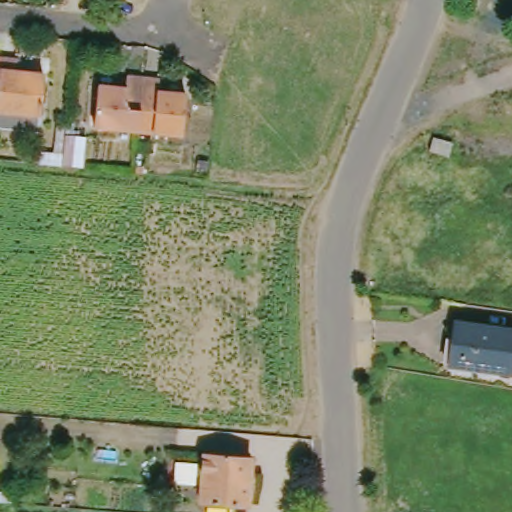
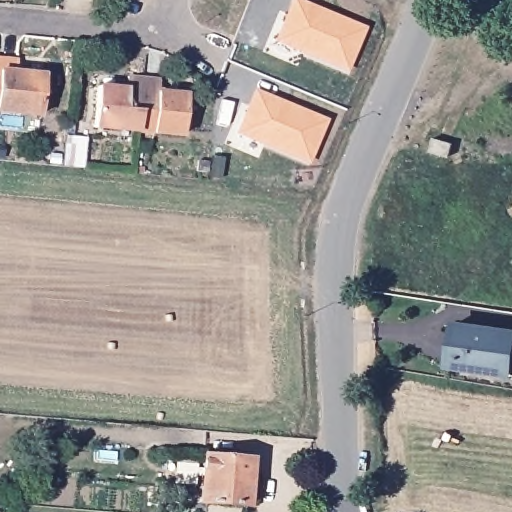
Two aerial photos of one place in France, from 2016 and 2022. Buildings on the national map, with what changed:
new [(297,0),(357,25),(341,66),(272,37),(287,0),(297,0)]
unchanged [(13,73),(40,74),(38,116),(0,113),(0,61),(13,62),(13,73)]
unchanged [(137,134),(93,130),(97,90),(124,92),(125,81),(141,82),(137,134)]
unchanged [(157,84),(157,96),(182,98),(180,138),(137,134),(141,82),(157,84)]
new [(251,88),(320,117),(303,158),(234,129),(251,88)]
new [(27,150),(47,152),(48,124),(60,125),(56,164),(26,162),(27,150)]
unchanged [(451,151),(439,148),(443,135),(454,139),(451,151)]
unchanged [(506,373),(505,376),(445,364),(452,322),(512,334),(512,339),(512,375),(506,373)]
unchanged [(243,512),(195,508),(197,461),(245,464),(243,512)]

